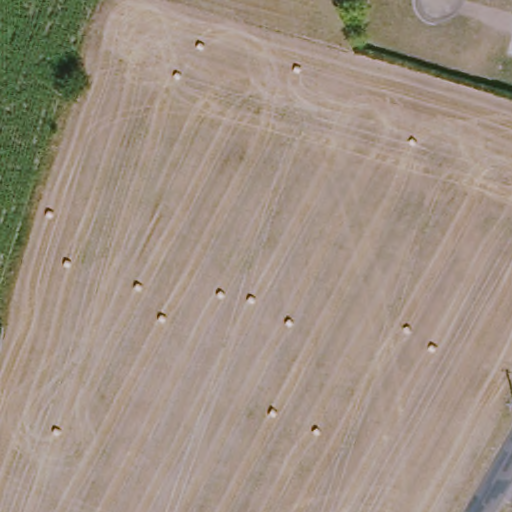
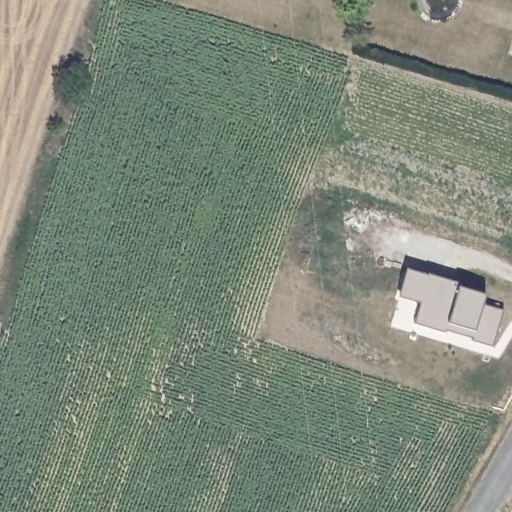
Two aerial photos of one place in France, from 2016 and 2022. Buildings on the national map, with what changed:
new [(495,345),(472,340),(473,337),(446,329),(445,331),(415,323),(420,302),(400,296),(407,269),(460,282),(459,287),(485,295),(484,302),(505,310),(495,345)]

